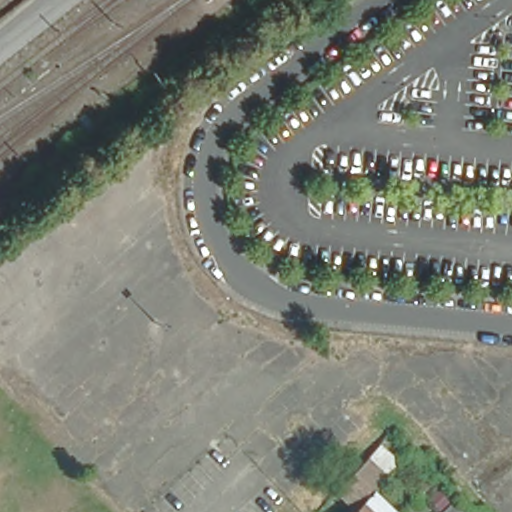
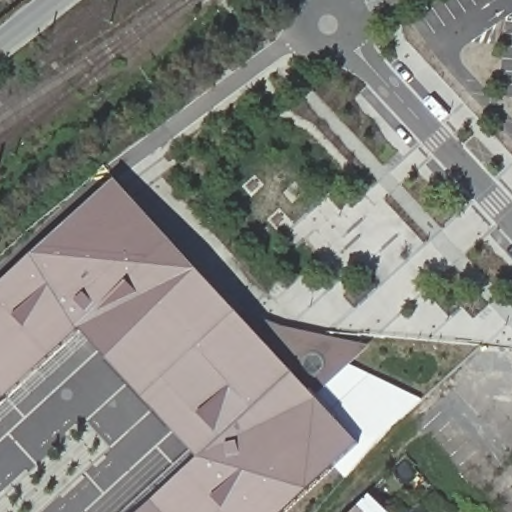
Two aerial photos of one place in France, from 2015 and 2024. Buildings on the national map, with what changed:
new [(358,438),(281,512),(137,512),(199,454),(83,327),(0,403),(0,280),(116,174),(358,438)]
new [(332,463),(358,438),(260,331),(267,319),(281,326),(370,347),(350,364),(424,398),(346,478),(332,463)]
unchanged [(415,463),(412,467),(403,477),(395,470),(383,482),(368,498),(357,511),(336,492),(381,442),(386,447),(381,452),(391,462),(401,451),(407,457),(415,463)]
unchanged [(424,492),(407,477),(414,468),(431,485),(424,492)]
unchanged [(368,498),(372,502),(383,512),(356,512),(357,511),(368,498)]
demolished [(458,512),(443,512),(450,504),(458,512)]

